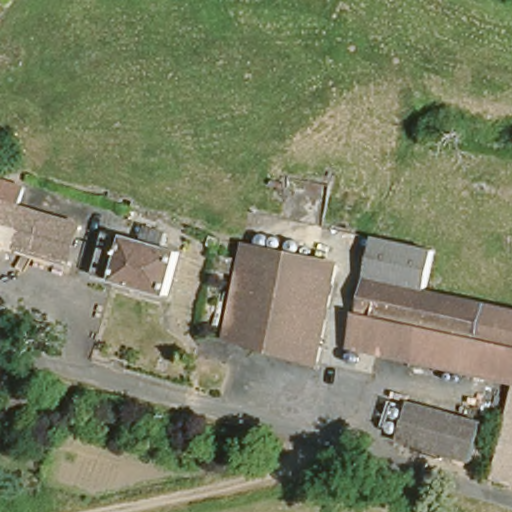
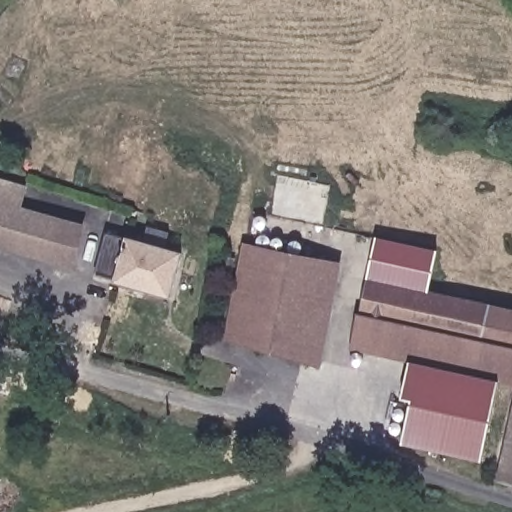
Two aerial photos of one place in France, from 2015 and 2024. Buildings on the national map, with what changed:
unchanged [(18,209),(0,204),(0,172),(25,179),(18,209)]
unchanged [(18,209),(75,223),(67,259),(0,243),(0,204),(18,209)]
unchanged [(142,239),(145,220),(167,225),(164,243),(180,246),(169,299),(127,289),(130,282),(102,275),(109,232),(142,239)]
unchanged [(384,240),(443,256),(435,294),(375,277),(384,240)]
unchanged [(308,361),(224,337),(247,244),(335,269),(308,361)]
unchanged [(375,277),(435,294),(450,299),(500,313),(492,342),(512,346),(512,393),(355,345),(375,277)]
new [(500,313),(450,299),(435,294),(512,308),(512,346),(492,342),(500,313)]
new [(496,388),(485,423),(411,403),(412,398),(402,397),(410,361),(496,388)]
unchanged [(512,393),(512,477),(494,473),(512,393)]
unchanged [(486,423),(474,465),(393,443),(405,402),(486,423)]
unchanged [(267,443),(235,436),(240,414),(272,424),(267,443)]

